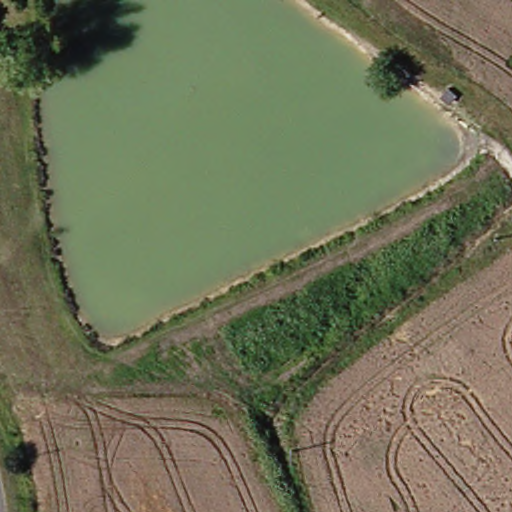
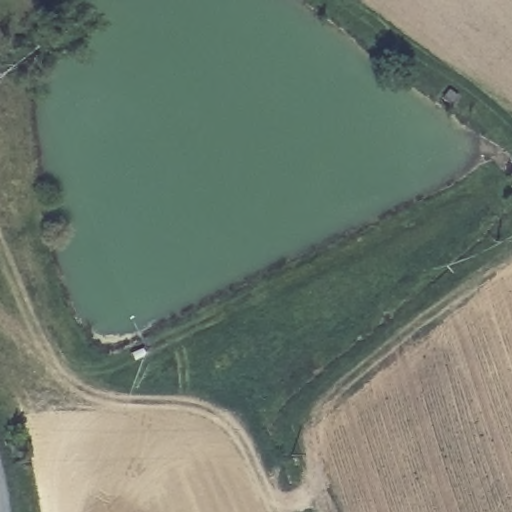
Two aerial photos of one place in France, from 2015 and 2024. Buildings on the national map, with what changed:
unchanged [(436,107),(429,101),(435,95),(442,101),(436,107)]

